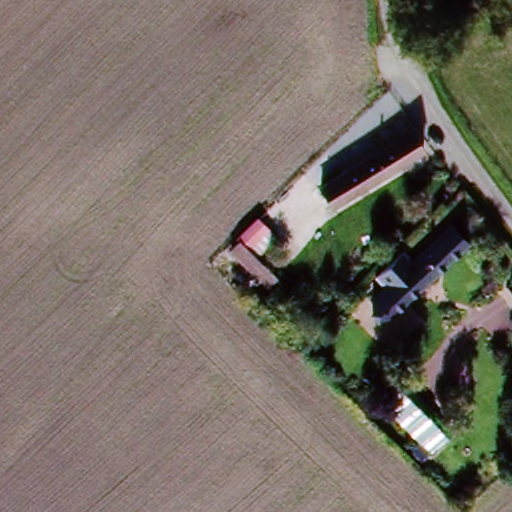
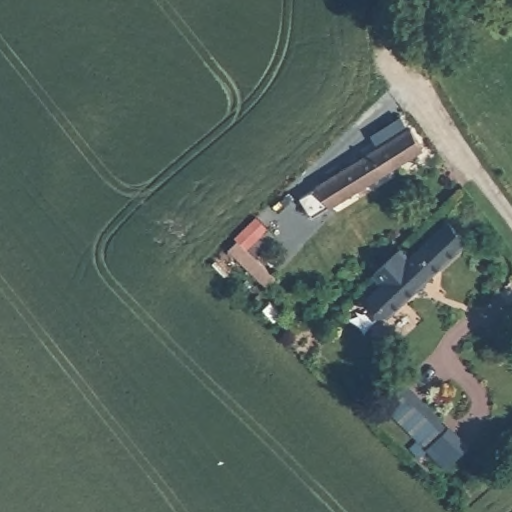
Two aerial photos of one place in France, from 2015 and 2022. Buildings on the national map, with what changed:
unchanged [(429,152),(338,198),(326,172),(332,169),(327,157),(343,151),(348,162),(419,129),(429,152)]
unchanged [(409,251),(415,257),(453,217),(472,235),(416,293),(397,313),(380,295),(390,284),(383,278),(409,251)]
unchanged [(265,286),(229,247),(244,233),(283,272),(265,286)]
unchanged [(406,383),(441,420),(423,437),(388,400),(406,383)]

